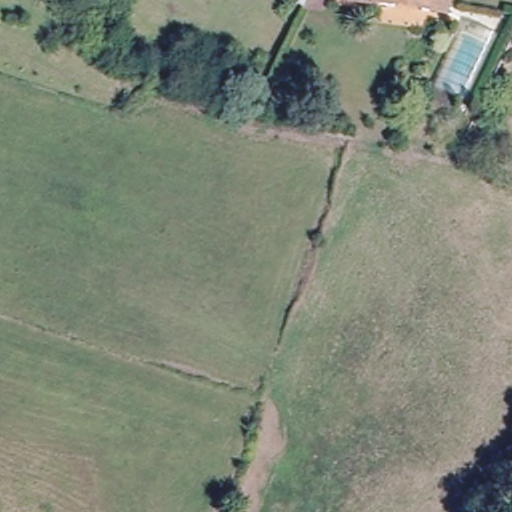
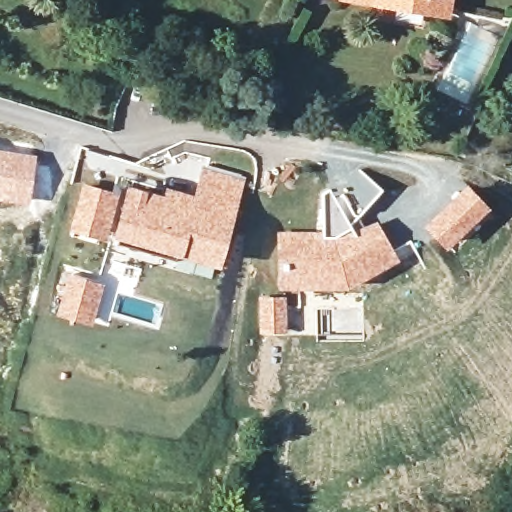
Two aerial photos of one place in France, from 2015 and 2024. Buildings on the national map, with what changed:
unchanged [(446,4),(419,0),(447,0),(446,4)]
new [(37,154),(27,207),(0,200),(0,148),(37,154)]
new [(121,193),(125,182),(162,193),(164,186),(192,193),(201,164),(245,176),(219,268),(109,237),(121,193)]
new [(322,191),(329,188),(343,178),(357,166),(382,189),(350,223),(352,227),(336,236),(322,236),(322,231),(322,191)]
new [(81,181),(121,193),(109,237),(107,236),(105,241),(67,232),(81,181)]
new [(465,183),(489,207),(445,250),(422,225),(465,183)]
new [(276,231),(322,231),(322,236),(336,236),(352,227),(355,230),(375,219),(393,248),(408,240),(415,251),(400,259),(344,290),(298,291),(276,290),(276,231)]
new [(63,271),(104,283),(90,326),(54,315),(63,271)]
new [(286,296),(286,333),(258,333),(258,296),(286,296)]

